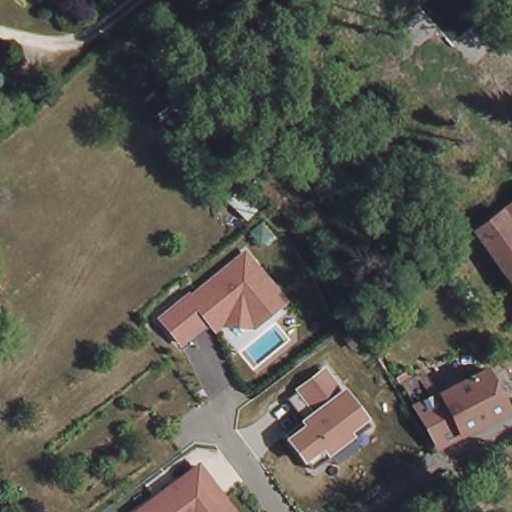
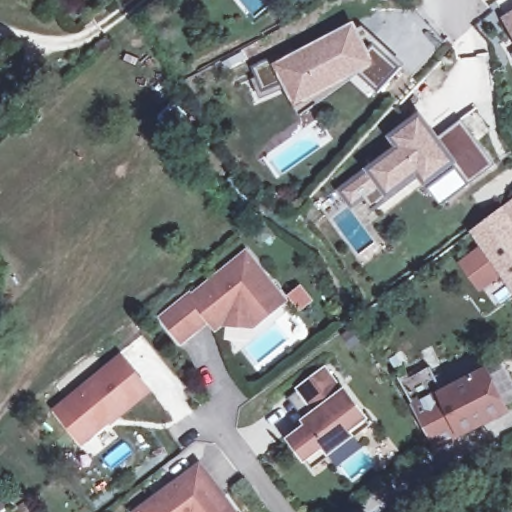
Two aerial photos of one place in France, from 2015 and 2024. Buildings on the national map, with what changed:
new [(506,19),(512,15),(512,29),(506,19)]
new [(301,100),(292,84),(266,99),(251,74),(289,53),(296,63),(351,31),(357,27),(373,42),(401,68),(378,93),(357,74),(311,116),(301,100)]
new [(429,185),(418,170),(372,207),(362,194),(355,199),(347,187),(400,147),(394,136),(413,123),(428,144),(460,120),(494,164),(468,184),(442,202),(429,185)]
unchanged [(499,210),(512,200),(512,238),(494,213),(499,210)]
unchanged [(512,238),(512,300),(504,288),(466,235),(494,213),(512,238)]
unchanged [(244,249),(287,301),(252,329),(213,328),(211,325),(181,344),(158,317),(244,249)]
new [(54,411),(119,357),(125,363),(148,391),(118,415),(117,414),(81,443),(58,415),(54,411)]
unchanged [(341,389),(345,386),(370,418),(351,432),(356,437),(329,456),(324,450),(306,463),(288,438),(304,426),(301,421),(311,413),(294,388),(325,367),(341,389)]
unchanged [(432,402),(485,374),(506,415),(436,452),(400,387),(397,383),(404,379),(407,383),(417,378),(432,402)]
unchanged [(131,512),(199,464),(237,512),(131,512)]

